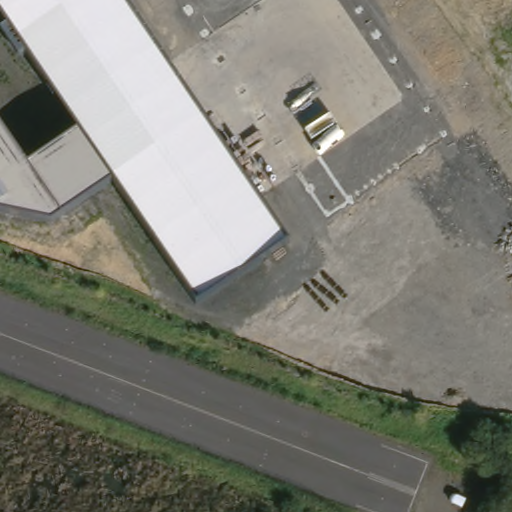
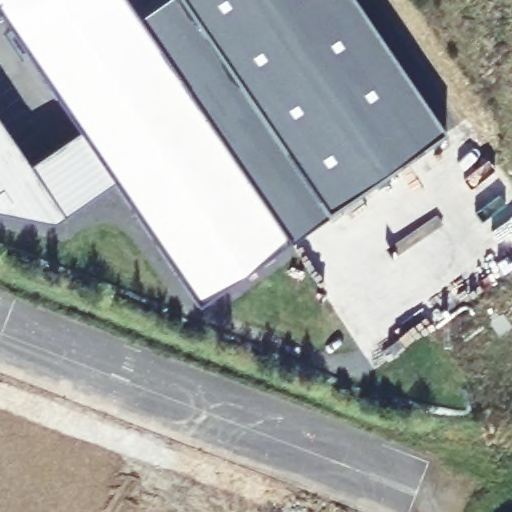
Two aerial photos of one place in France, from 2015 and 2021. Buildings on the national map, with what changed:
unchanged [(197,305),(112,180),(52,223),(0,212),(0,122),(29,164),(79,130),(0,14),(0,0),(123,0),(289,245),(197,305)]
new [(352,0),(445,135),(289,245),(129,9),(141,0),(352,0)]
demolished [(163,0),(224,0),(182,28),(163,0)]

